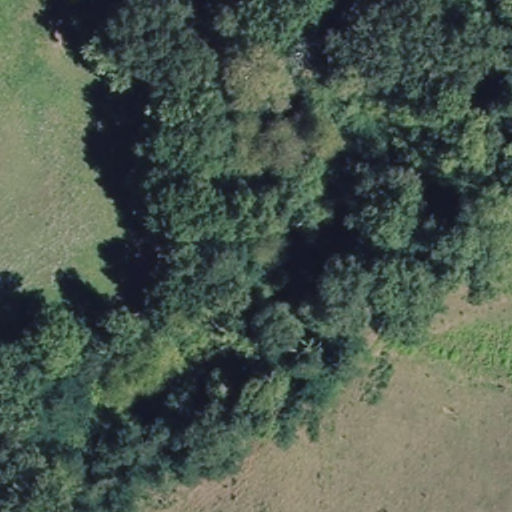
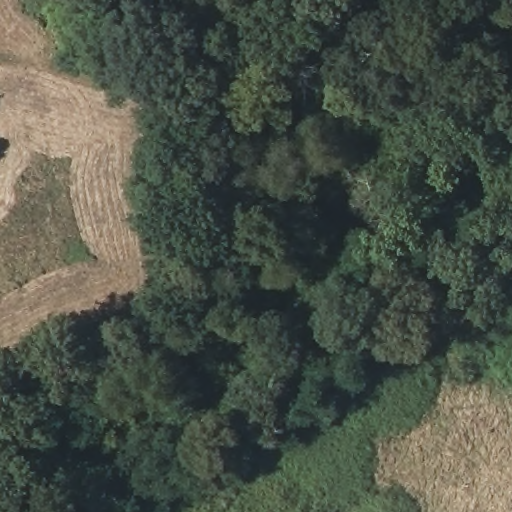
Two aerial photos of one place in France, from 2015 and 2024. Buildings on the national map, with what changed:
[]

